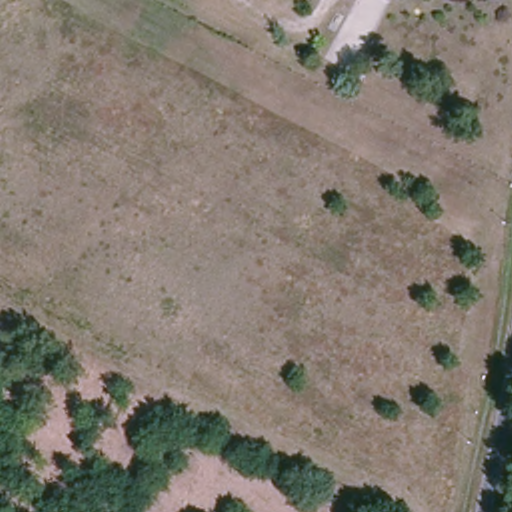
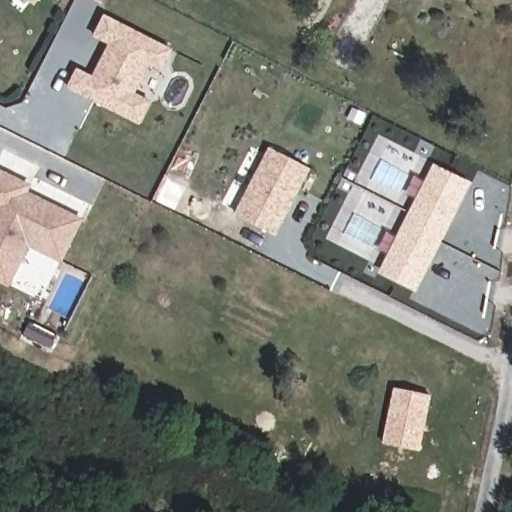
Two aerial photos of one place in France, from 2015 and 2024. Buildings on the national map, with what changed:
new [(39,4),(35,0),(42,0),(39,4)]
new [(66,88),(77,68),(92,76),(109,46),(93,37),(105,14),(174,49),(162,72),(151,66),(136,93),(153,101),(140,126),(66,88)]
new [(277,237),(235,215),(270,148),(312,169),(277,237)]
new [(433,163),(473,184),(418,293),(378,272),(433,163)]
new [(32,185),(30,192),(85,220),(65,264),(30,248),(10,287),(0,282),(0,171),(32,185)]
new [(394,388),(433,396),(421,452),(383,444),(394,388)]

